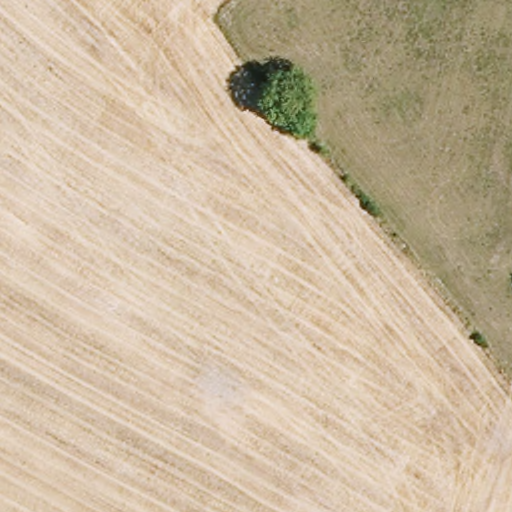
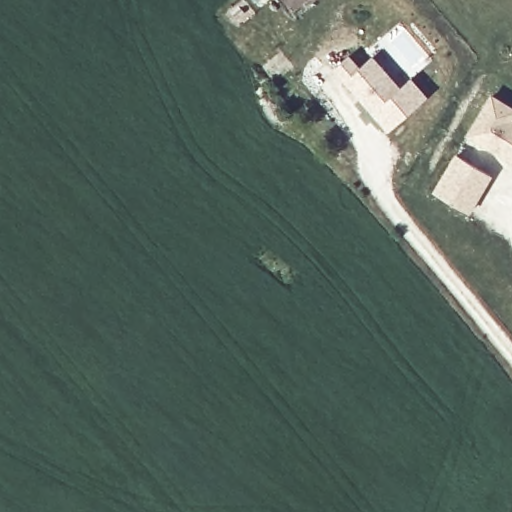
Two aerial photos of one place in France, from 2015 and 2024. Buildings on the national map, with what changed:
new [(334,68),(350,56),(361,68),(374,56),(402,87),(412,78),(429,96),(387,130),(334,68)]
new [(492,94),(512,106),(512,161),(467,135),(492,94)]
new [(434,192),(456,154),(491,176),(470,213),(434,192)]

